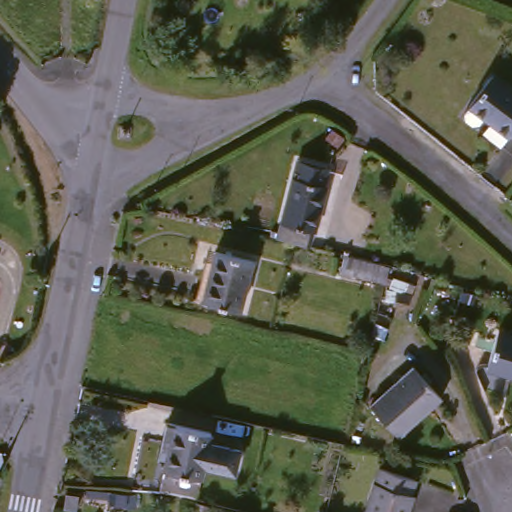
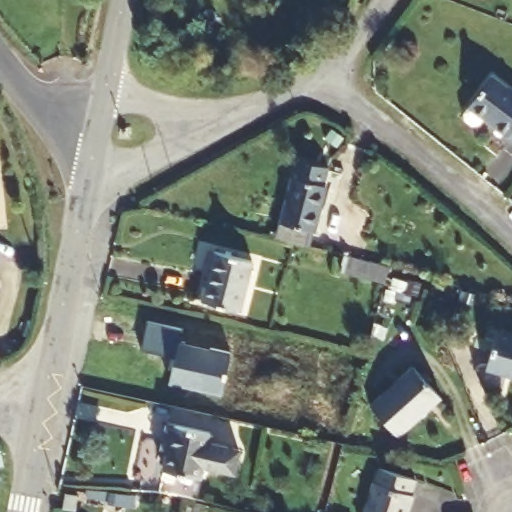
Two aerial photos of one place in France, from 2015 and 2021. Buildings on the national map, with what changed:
unchanged [(492,82),(512,99),(512,143),(511,142),(507,147),(466,111),(492,82)]
unchanged [(275,244),(291,165),(325,174),(305,254),(275,244)]
unchanged [(393,271),(387,290),(342,276),(347,256),(393,271)]
unchanged [(255,267),(245,316),(209,307),(220,259),(255,267)]
new [(182,327),(179,341),(210,348),(210,344),(234,349),(224,391),(170,381),(173,366),(170,366),(172,353),(141,347),(147,319),(182,327)]
unchanged [(512,339),(512,384),(485,377),(498,335),(512,339)]
unchanged [(405,374),(435,405),(397,440),(368,408),(405,374)]
unchanged [(159,467),(165,422),(212,435),(212,441),(244,448),(239,475),(207,468),(203,478),(159,467)]
unchanged [(410,501),(407,512),(365,512),(377,474),(412,485),(409,498),(410,501)]
unchanged [(57,512),(57,501),(71,500),(71,512),(57,512)]
unchanged [(191,512),(186,512),(186,510),(191,512)]

